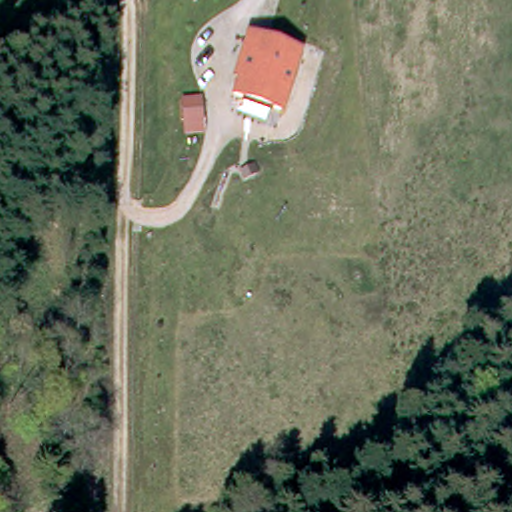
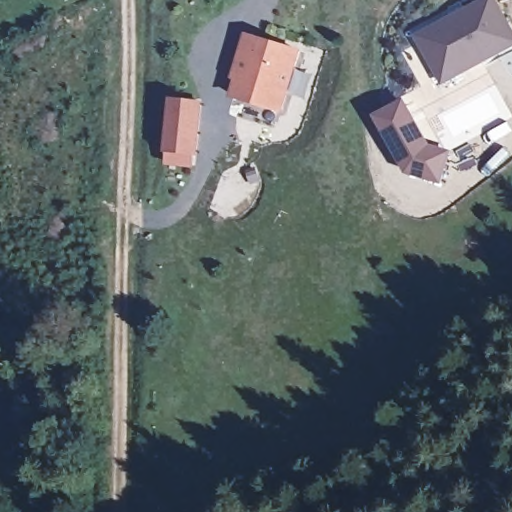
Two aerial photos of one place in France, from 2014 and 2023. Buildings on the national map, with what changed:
new [(512,25),(512,48),(443,85),(417,35),(482,0),(499,0),(512,25)]
unchanged [(246,37),(301,50),(282,113),(230,94),(246,37)]
new [(203,102),(198,154),(165,151),(171,98),(203,102)]
new [(433,144),(451,149),(443,182),(407,173),(375,114),(408,98),(433,144)]

